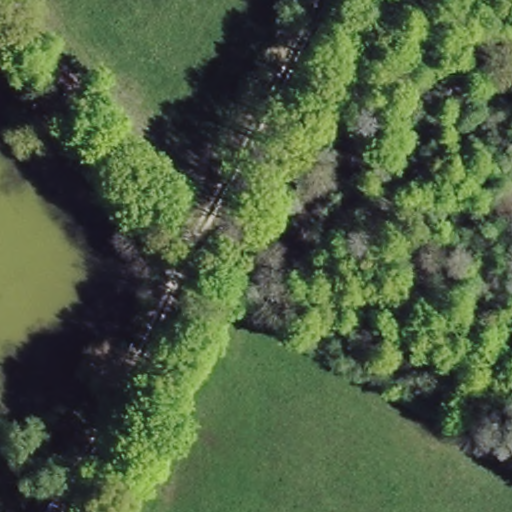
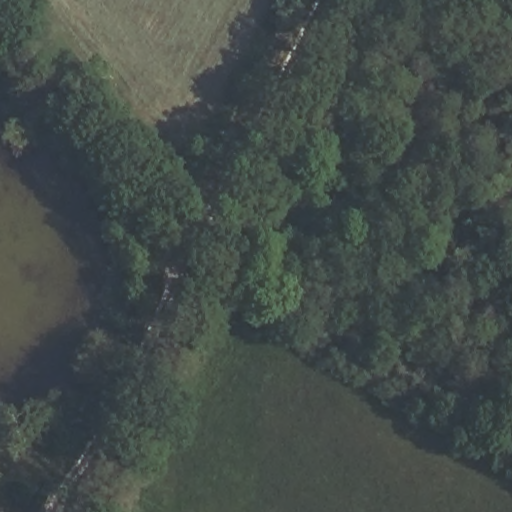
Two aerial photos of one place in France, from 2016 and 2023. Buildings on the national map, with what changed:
unchanged [(512,192),(512,220),(495,213),(509,191),(512,192)]
unchanged [(13,508),(12,512),(0,512),(0,505),(13,508)]

